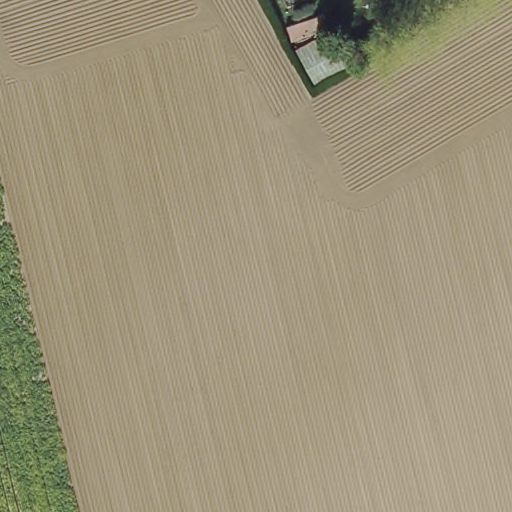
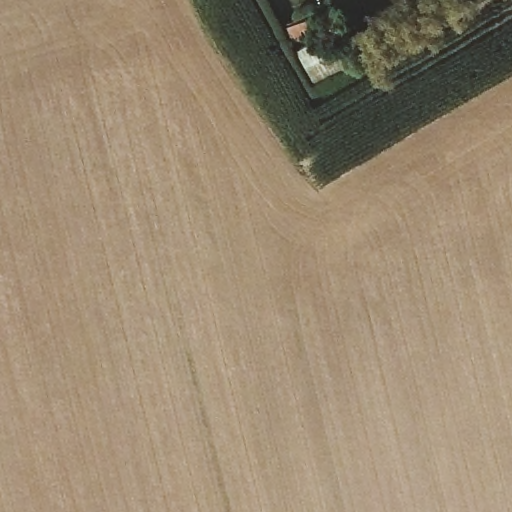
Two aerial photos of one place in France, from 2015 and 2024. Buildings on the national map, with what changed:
unchanged [(318,24),(323,39),(295,49),(290,33),(318,24)]
unchanged [(336,34),(353,65),(313,89),(297,55),(336,34)]

